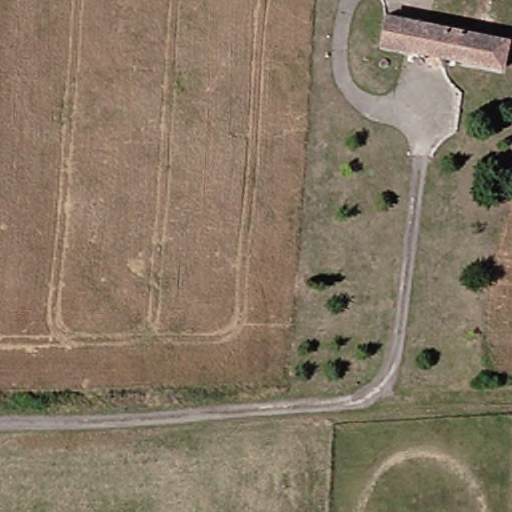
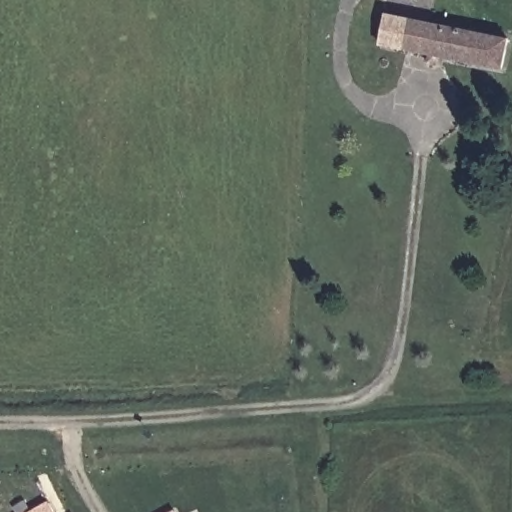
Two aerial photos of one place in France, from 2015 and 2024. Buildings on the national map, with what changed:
unchanged [(501,73),(377,55),(382,20),(506,38),(501,73)]
new [(50,501),(56,512),(31,512),(50,501)]

